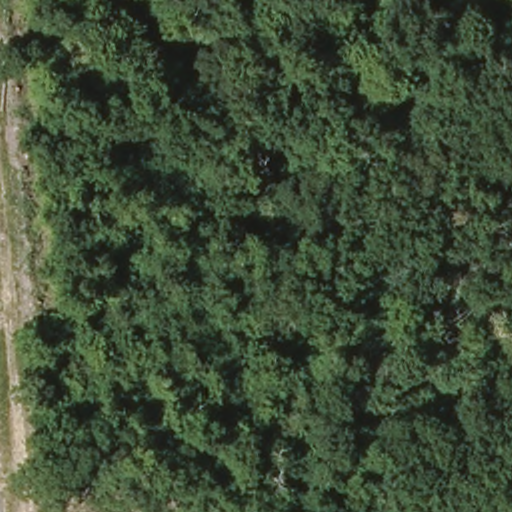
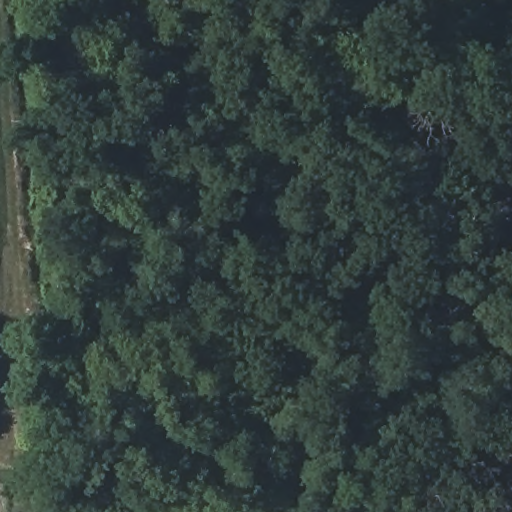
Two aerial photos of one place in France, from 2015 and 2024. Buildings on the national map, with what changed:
unchanged [(202,401),(190,401),(190,391),(202,391),(202,401)]

